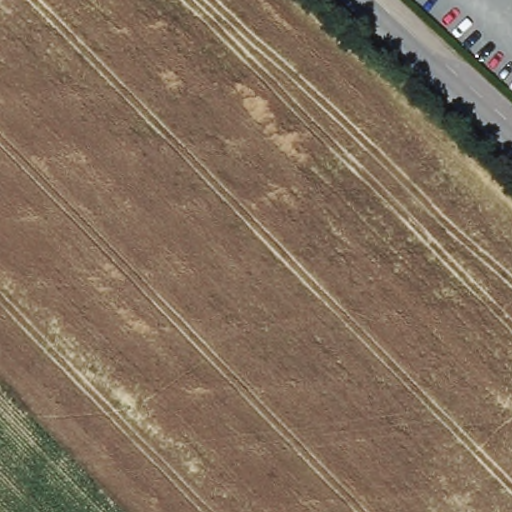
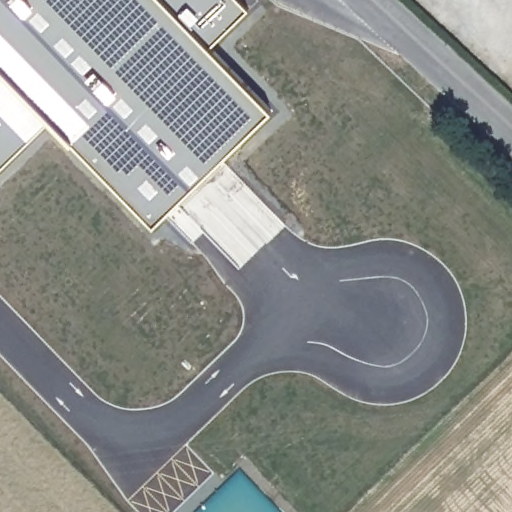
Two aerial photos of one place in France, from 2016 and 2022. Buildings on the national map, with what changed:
new [(249,10),(210,47),(272,111),(154,226),(50,120),(0,168),(0,0),(239,0),(249,10)]

